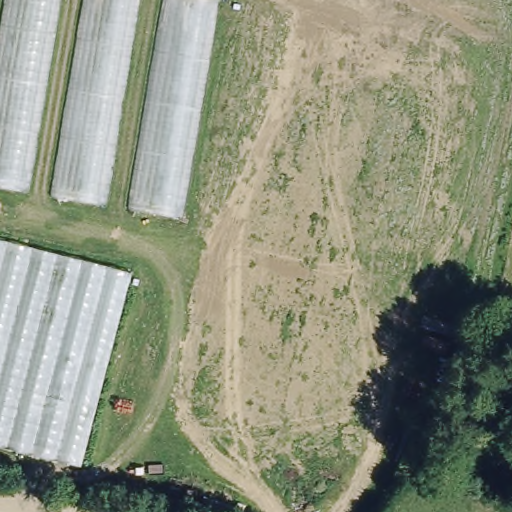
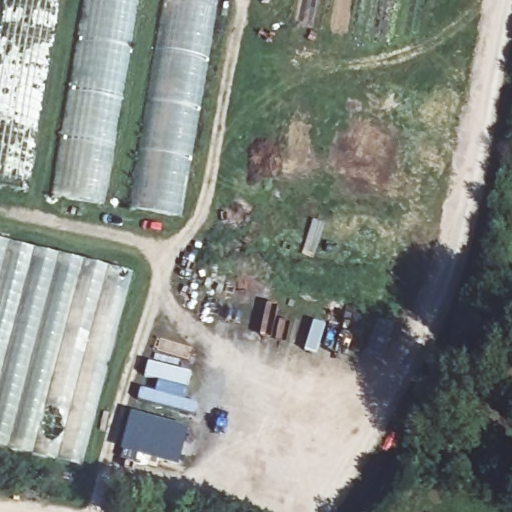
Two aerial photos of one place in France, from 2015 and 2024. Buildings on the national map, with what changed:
unchanged [(25,192),(0,189),(0,46),(7,0),(57,0),(25,192)]
unchanged [(101,204),(54,196),(87,0),(135,0),(101,204)]
unchanged [(162,0),(217,0),(181,217),(128,207),(162,0)]
demolished [(425,0),(447,0),(445,7),(425,1),(425,0)]
demolished [(458,0),(480,0),(477,13),(456,10),(458,0)]
unchanged [(0,448),(0,238),(138,273),(85,470),(0,448)]
new [(188,430),(178,467),(120,451),(130,413),(188,430)]

